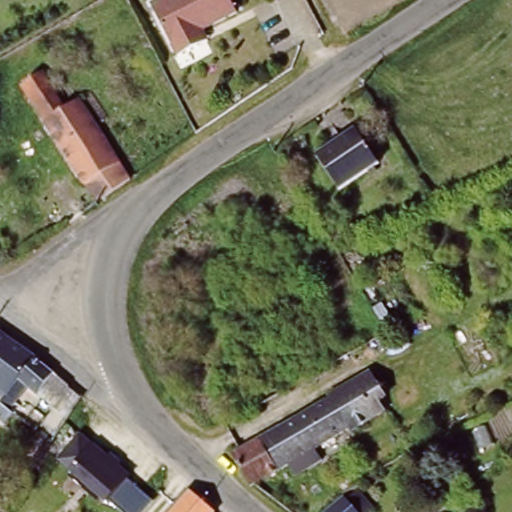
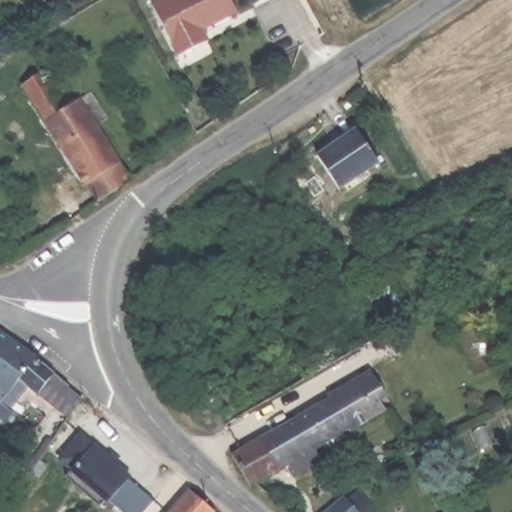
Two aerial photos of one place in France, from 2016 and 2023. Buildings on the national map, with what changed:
unchanged [(177,59),(150,7),(164,0),(232,0),(238,14),(204,32),(209,42),(200,46),(177,59)]
unchanged [(17,86),(43,70),(55,90),(65,83),(127,179),(92,203),(17,86)]
unchanged [(372,166),(335,191),(313,158),(328,147),(334,144),(349,133),(372,166)]
unchanged [(0,400),(3,395),(0,392),(0,335),(34,360),(82,401),(67,422),(37,401),(32,410),(17,408),(11,417),(7,423),(0,419),(0,400)]
unchanged [(298,460),(281,430),(327,403),(325,400),(367,374),(382,398),(373,403),(380,414),(345,435),(343,431),(305,455),(298,460)]
unchanged [(78,430),(150,485),(131,512),(125,512),(53,460),(78,430)]
unchanged [(281,430),(298,460),(256,485),(245,492),(237,480),(230,468),(228,469),(225,462),(229,460),(281,430)]
unchanged [(207,512),(166,512),(184,492),(207,512)]

